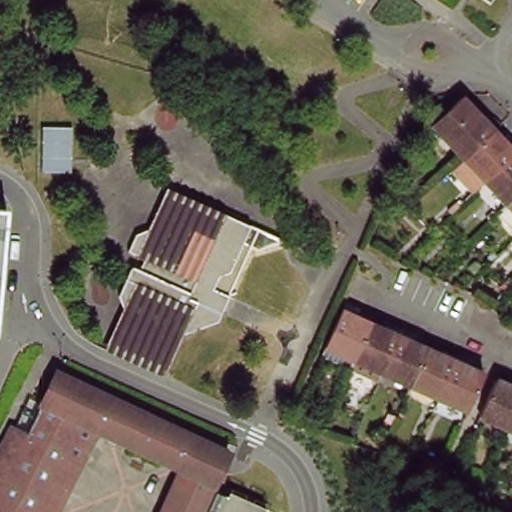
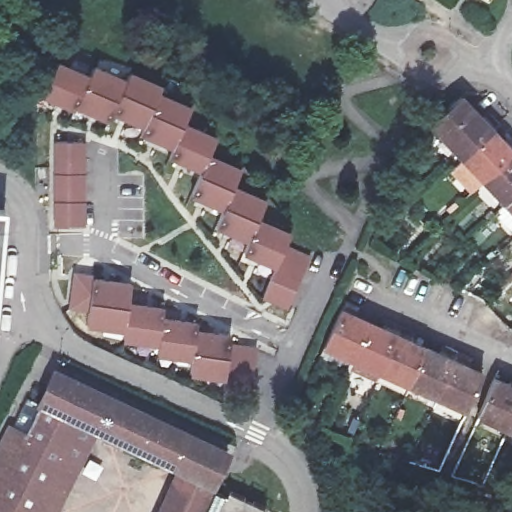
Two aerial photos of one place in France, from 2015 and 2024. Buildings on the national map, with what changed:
new [(89,79),(93,69),(124,82),(129,74),(163,89),(159,96),(191,112),(186,124),(216,142),(210,157),(242,174),(235,190),(269,207),(262,223),(290,237),(286,250),(313,262),(292,313),(269,305),(280,274),(243,258),(246,247),(220,234),(226,217),(192,198),(200,180),(171,165),(174,156),(140,140),(142,132),(113,117),(107,126),(43,99),(57,66),(89,79)]
unchanged [(482,182),(461,160),(456,166),(434,143),(444,132),(433,120),(450,103),(462,116),(484,138),(505,161),(512,168),(512,211),(503,202),(482,182)]
new [(83,142),(82,227),(51,227),(50,142),(83,142)]
demolished [(103,356),(119,321),(107,303),(121,276),(136,282),(141,269),(122,261),(128,246),(142,247),(165,194),(315,257),(285,329),(230,307),(218,332),(176,333),(155,378),(103,356)]
unchanged [(7,213),(0,294),(0,212),(7,213)]
new [(130,280),(128,302),(163,307),(162,317),(197,321),(195,328),(231,333),(230,343),(253,347),(248,394),(223,392),(221,381),(189,377),(191,362),(155,357),(157,348),(123,343),(123,332),(85,328),(91,277),(130,280)]
unchanged [(442,392),(413,380),(385,368),(359,355),(329,344),(341,317),(370,329),(397,341),(425,352),(452,363),(481,377),(470,402),(442,392)]
unchanged [(179,476),(90,436),(40,412),(57,377),(89,392),(232,457),(215,493),(179,476)]
unchanged [(496,382),(512,389),(512,422),(484,411),(496,382)]
unchanged [(90,436),(57,512),(0,512),(0,449),(10,428),(28,437),(40,412),(90,436)]
unchanged [(179,476),(215,493),(207,512),(163,512),(179,476)]
unchanged [(215,493),(231,500),(233,496),(266,512),(207,512),(215,493)]

